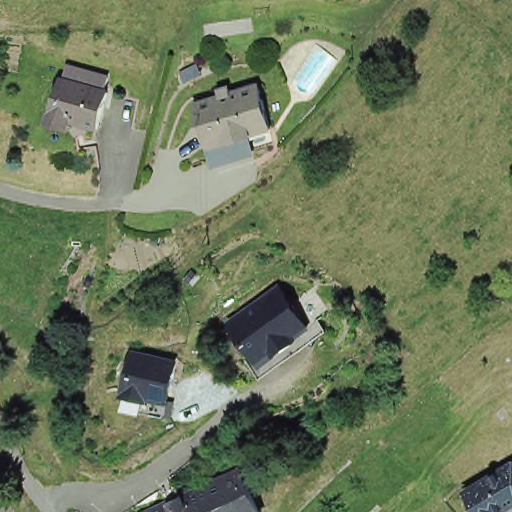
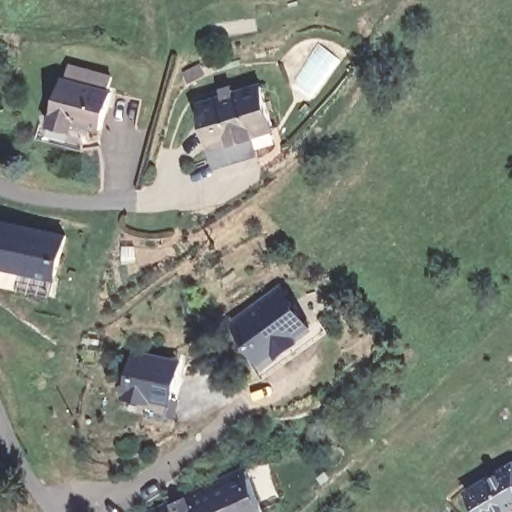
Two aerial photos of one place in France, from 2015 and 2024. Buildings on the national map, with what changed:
unchanged [(75,128),(73,132),(49,126),(58,85),(61,85),(64,71),(109,81),(106,95),(110,96),(101,134),(75,128)]
unchanged [(256,137),(255,131),(211,143),(208,133),(197,90),(261,73),(273,116),(277,131),(256,137)]
new [(0,282),(0,249),(6,222),(65,236),(51,295),(0,282)]
unchanged [(232,324),(284,285),(315,329),(265,370),(232,324)]
unchanged [(175,405),(125,397),(133,350),(183,363),(175,405)]
unchanged [(502,402),(509,412),(500,418),(493,409),(502,402)]
unchanged [(463,489),(512,459),(512,500),(493,512),(477,512),(463,489)]
unchanged [(237,468),(255,505),(241,512),(146,512),(237,468)]
unchanged [(255,505),(259,512),(241,512),(255,505)]

